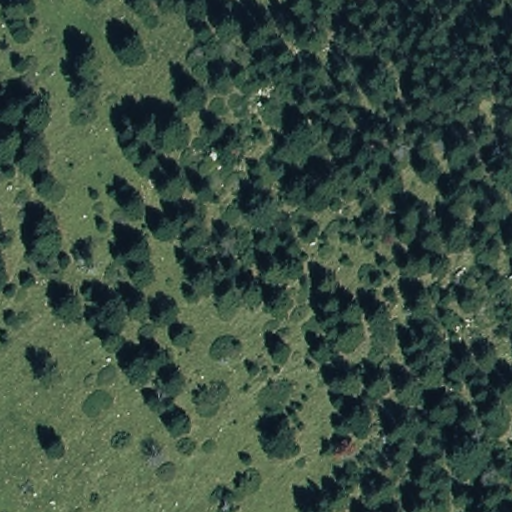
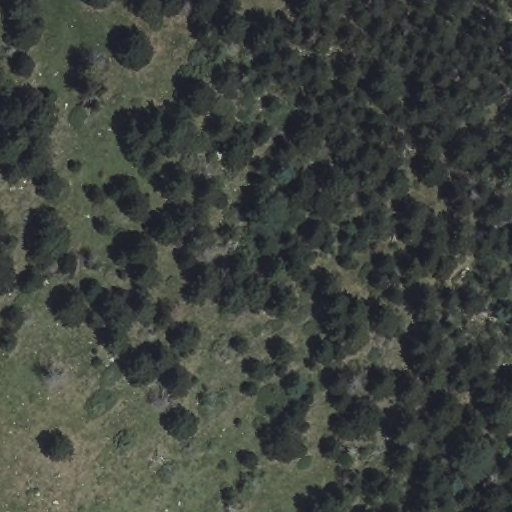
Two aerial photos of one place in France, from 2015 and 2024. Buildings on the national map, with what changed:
[]

